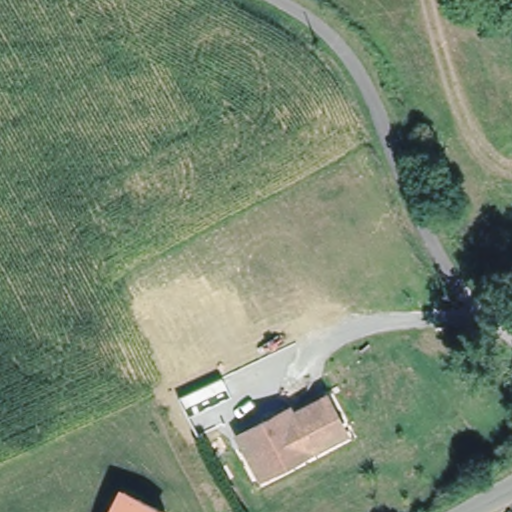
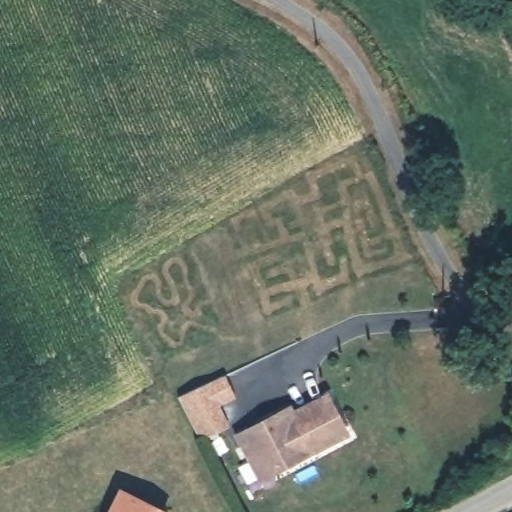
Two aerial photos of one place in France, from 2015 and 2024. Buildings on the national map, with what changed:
new [(200,440),(179,396),(225,375),(236,397),(220,405),(230,426),(200,440)]
unchanged [(250,464),(234,435),(285,410),(288,416),(323,397),(344,438),(273,476),(259,483),(250,464)]
unchanged [(119,487),(170,512),(107,512),(119,487)]

